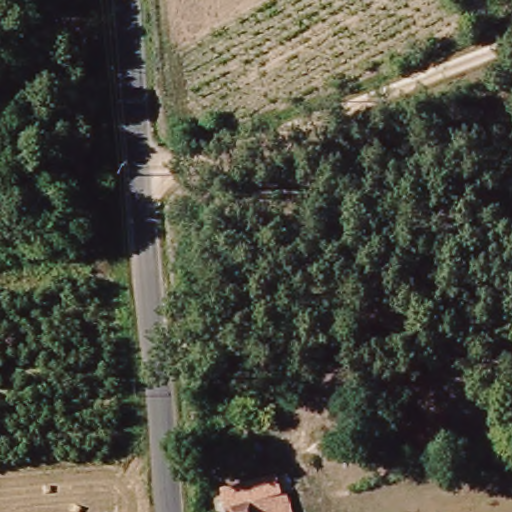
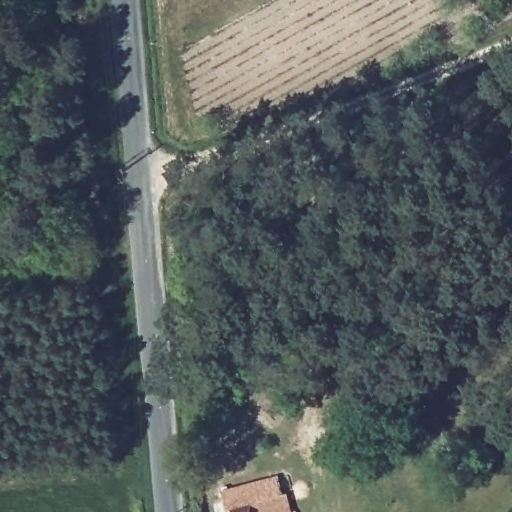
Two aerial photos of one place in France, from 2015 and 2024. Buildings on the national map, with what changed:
unchanged [(221,491),(255,484),(261,512),(225,512),(221,491)]

